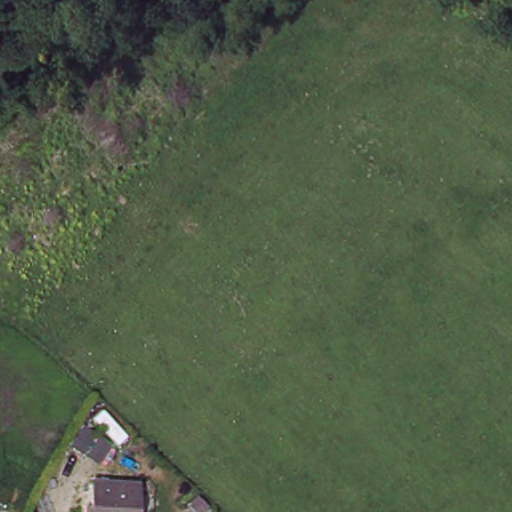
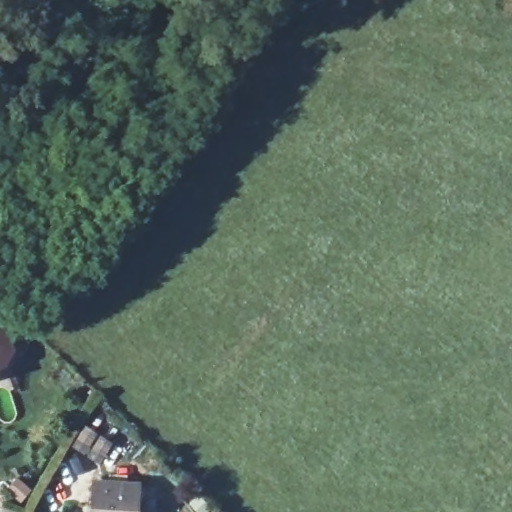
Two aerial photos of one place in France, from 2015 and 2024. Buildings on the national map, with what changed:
new [(5,330),(11,352),(4,365),(0,367),(0,332),(5,330)]
unchanged [(140,485),(137,512),(92,512),(95,481),(140,485)]

